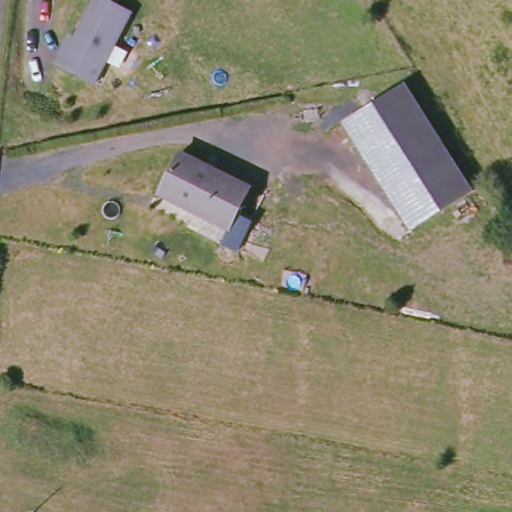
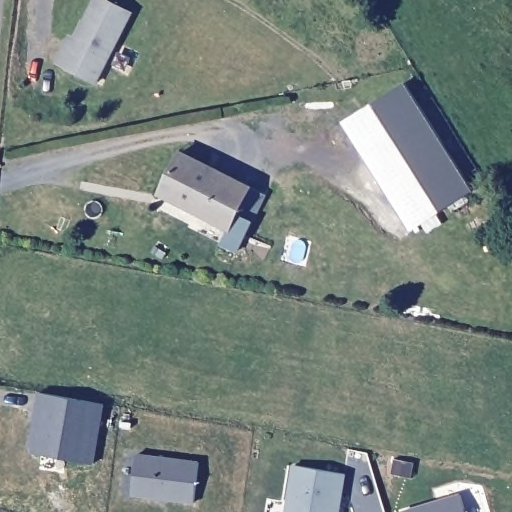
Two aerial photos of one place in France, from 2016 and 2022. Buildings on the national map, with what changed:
unchanged [(97,86),(57,65),(68,45),(72,47),(96,0),(102,0),(133,16),(97,86)]
unchanged [(405,84),(473,191),(410,231),(344,122),(405,84)]
unchanged [(191,208),(161,194),(182,154),(248,185),(231,221),(228,226),(191,208)]
new [(45,393),(103,404),(93,465),(34,454),(45,393)]
new [(136,455),(198,463),(193,503),(131,495),(136,455)]
new [(346,475),(341,512),(286,512),(292,465),(346,475)]
new [(461,493),(466,512),(402,512),(402,510),(461,493)]

